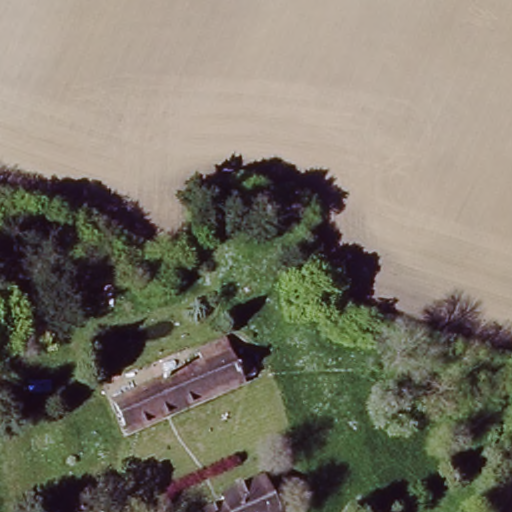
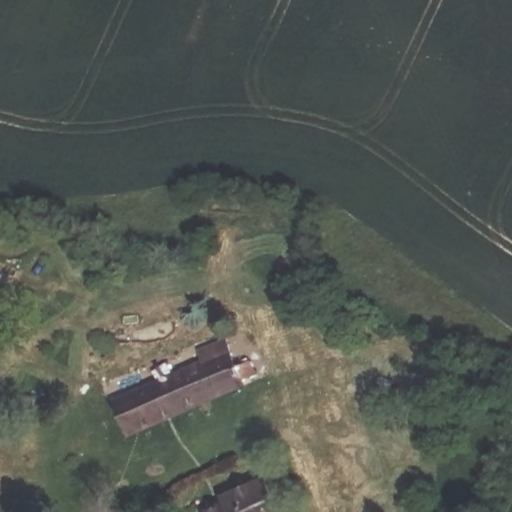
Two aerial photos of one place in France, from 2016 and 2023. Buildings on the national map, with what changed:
unchanged [(132,437),(124,408),(210,372),(208,357),(226,344),(236,366),(250,366),(259,380),(132,437)]
unchanged [(225,501),(220,492),(267,475),(286,512),(210,512),(225,501)]

